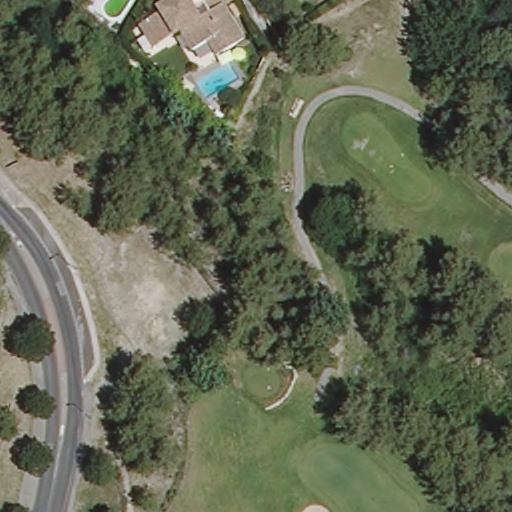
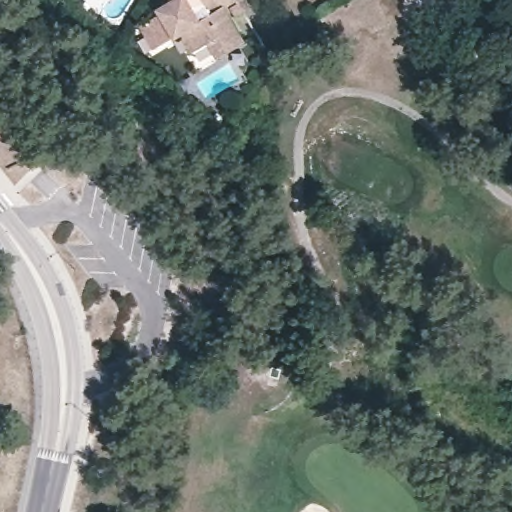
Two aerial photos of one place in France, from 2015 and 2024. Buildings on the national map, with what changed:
unchanged [(186,50),(174,30),(167,35),(147,46),(133,23),(154,11),(152,7),(164,0),(226,0),(217,5),(237,39),(217,51),(211,55),(202,40),(186,50)]

